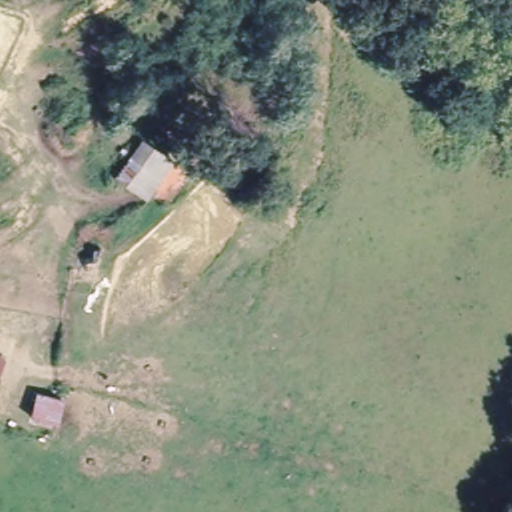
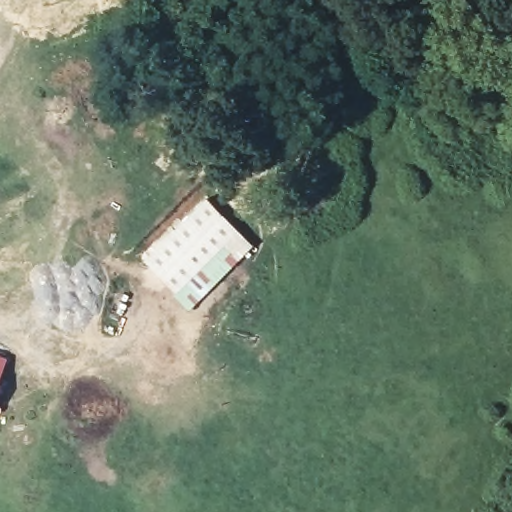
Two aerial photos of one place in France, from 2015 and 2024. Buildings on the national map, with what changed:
demolished [(189,171),(168,204),(152,196),(146,202),(114,180),(142,137),(189,171)]
new [(253,245),(191,307),(141,261),(206,199),(253,245)]
unchanged [(6,356),(0,372),(0,354),(6,356)]
demolished [(42,390),(64,395),(58,421),(36,416),(42,390)]

